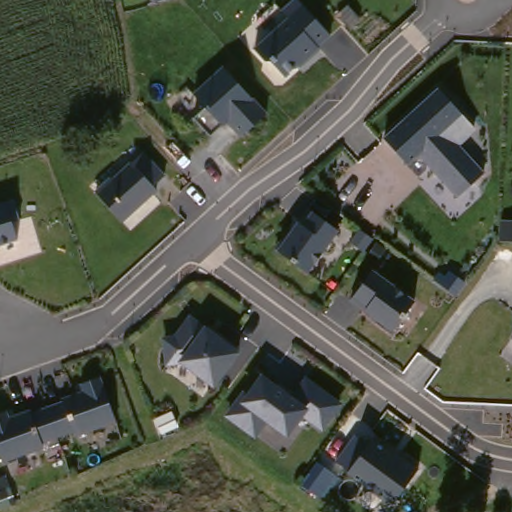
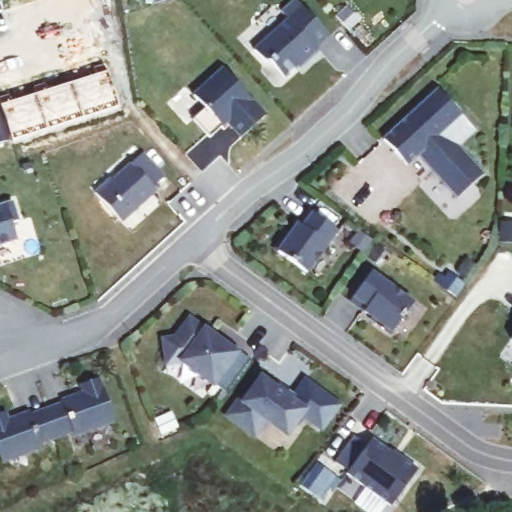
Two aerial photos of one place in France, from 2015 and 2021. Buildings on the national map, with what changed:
unchanged [(312,50),(314,51),(298,65),(296,64),(280,79),(266,64),(260,64),(249,52),(283,20),(277,13),(291,0),(325,38),(312,50)]
new [(12,94),(15,101),(39,94),(36,85),(48,82),(50,90),(99,74),(96,66),(107,62),(122,105),(15,141),(0,98),(12,94)]
unchanged [(235,140),(221,124),(204,140),(187,121),(200,110),(188,97),(218,71),(260,117),(235,140)]
unchanged [(420,155),(407,166),(382,139),(437,88),(476,131),(458,147),(483,174),(457,197),(420,155)]
unchanged [(90,195),(105,181),(107,184),(137,156),(159,180),(147,190),(151,194),(116,225),(90,195)]
unchanged [(4,205),(6,211),(15,209),(20,220),(11,222),(17,240),(0,245),(0,207),(4,205)]
unchanged [(280,236),(283,239),(302,212),(331,232),(300,275),(269,251),(280,236)]
unchanged [(365,272),(407,303),(385,335),(368,324),(371,321),(344,301),(365,272)]
unchanged [(159,343),(170,341),(185,321),(217,345),(220,342),(234,352),(209,387),(176,365),(162,367),(159,343)]
unchanged [(512,338),(512,339),(511,338),(512,338)]
unchanged [(312,411),(304,421),(296,415),(281,435),(261,420),(249,436),(222,416),(235,399),(240,402),(257,379),(270,389),(274,383),(283,390),(291,396),(301,382),(327,402),(318,415),(312,411)]
unchanged [(0,415),(3,422),(25,415),(25,416),(56,405),(56,403),(77,395),(75,388),(95,380),(111,425),(70,440),(69,436),(36,448),(38,452),(0,466),(0,415)]
unchanged [(342,475),(344,473),(331,464),(350,437),(363,447),(367,440),(393,460),(398,460),(414,471),(387,508),(342,475)]

